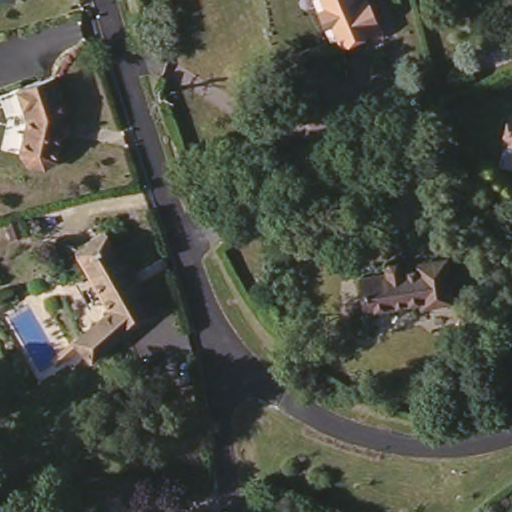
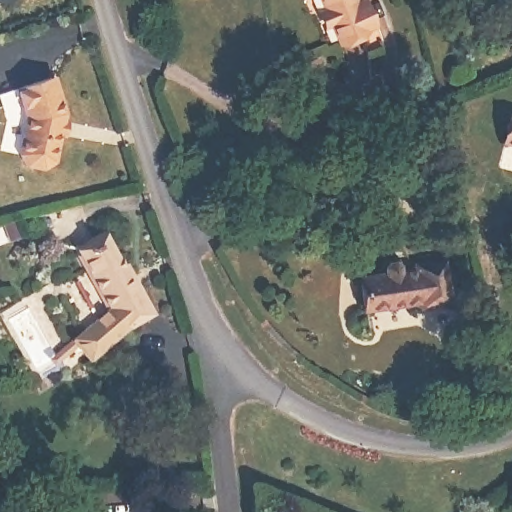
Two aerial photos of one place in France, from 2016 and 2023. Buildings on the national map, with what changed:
unchanged [(0,4),(0,0),(17,0),(16,6),(0,4)]
unchanged [(333,30),(329,16),(318,20),(311,2),(317,0),(362,0),(369,14),(333,30)]
unchanged [(60,74),(72,106),(60,158),(50,164),(32,162),(25,150),(5,144),(11,114),(2,91),(60,74)]
unchanged [(512,108),(512,136),(501,133),(508,107),(512,108)]
unchanged [(50,353),(68,340),(106,311),(75,248),(106,233),(146,311),(150,319),(133,327),(118,335),(83,361),(71,346),(53,360),(50,353)]
unchanged [(391,278),(390,268),(401,267),(407,277),(424,276),(423,271),(453,267),(457,308),(427,313),(427,309),(321,319),(318,288),(391,278)]

